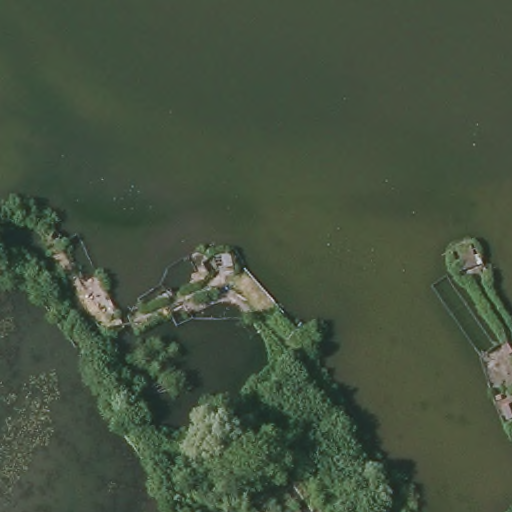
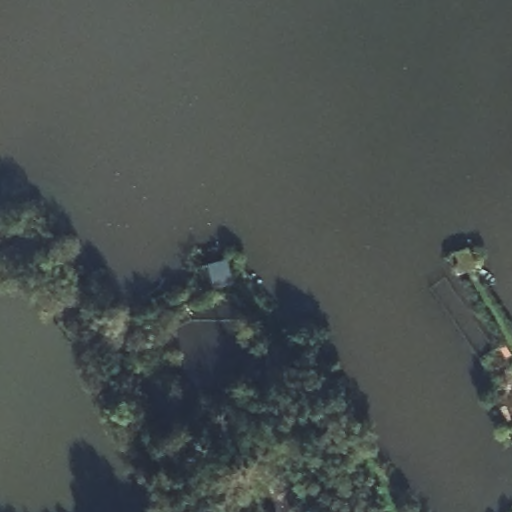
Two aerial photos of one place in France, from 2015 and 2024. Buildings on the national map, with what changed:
[]

